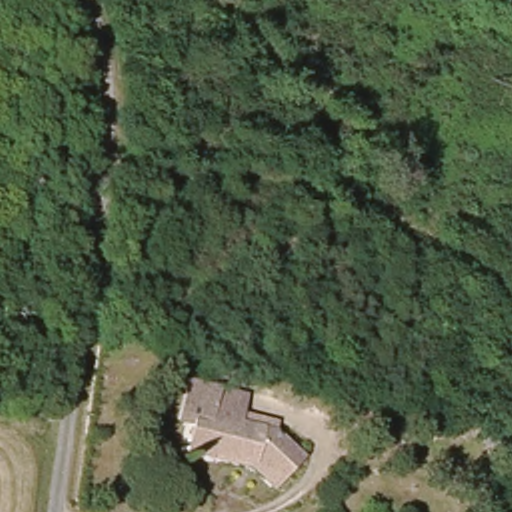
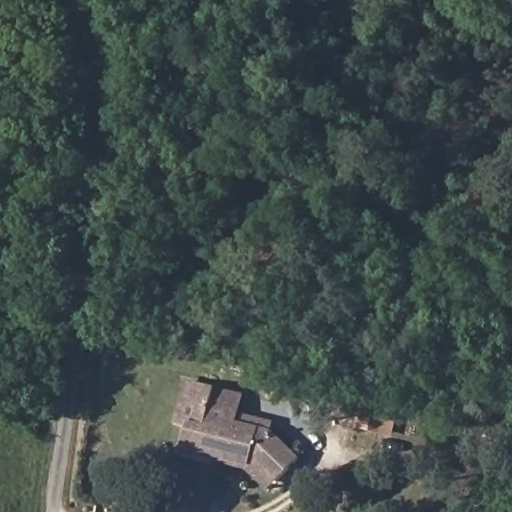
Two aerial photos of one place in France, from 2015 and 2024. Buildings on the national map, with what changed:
unchanged [(240,465),(242,463),(208,452),(206,455),(182,447),(190,417),(179,413),(190,378),(220,387),(237,392),(231,414),(274,425),(303,444),(305,445),(281,479),(274,489),(246,469),(240,465)]
unchanged [(395,456),(381,451),(373,449),(378,429),(387,431),(400,435),(395,456)]

